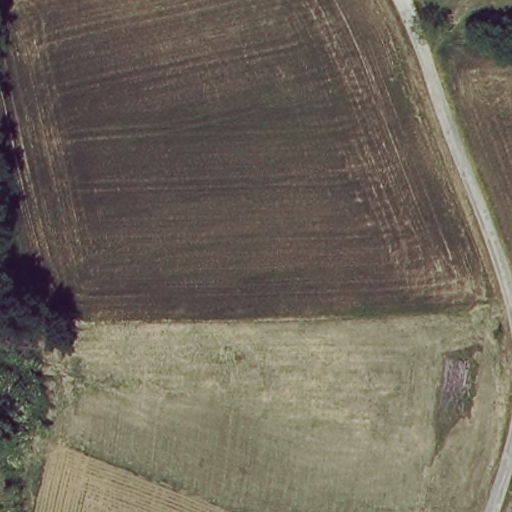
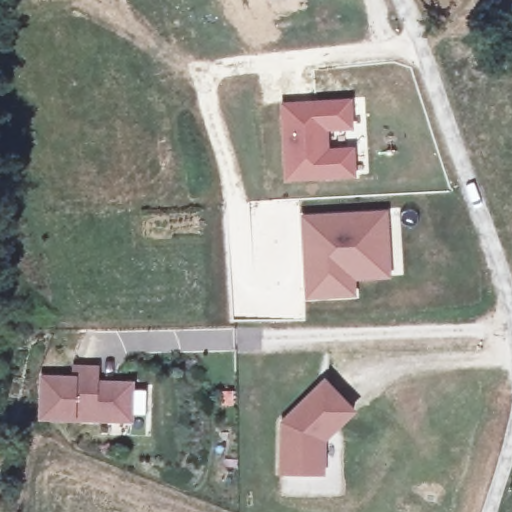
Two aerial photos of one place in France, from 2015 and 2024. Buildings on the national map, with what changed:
new [(286,182),(282,104),(352,100),(353,130),(328,131),(330,149),(354,149),(356,177),(286,182)]
new [(306,299),(303,217),(387,212),(390,278),(355,281),(357,297),(306,299)]
new [(133,423),(75,421),(39,420),(40,375),(72,376),(73,364),(101,364),(100,379),(133,380),(133,423)]
new [(355,413),(324,441),(325,475),(280,474),(281,422),(326,379),(355,413)]

